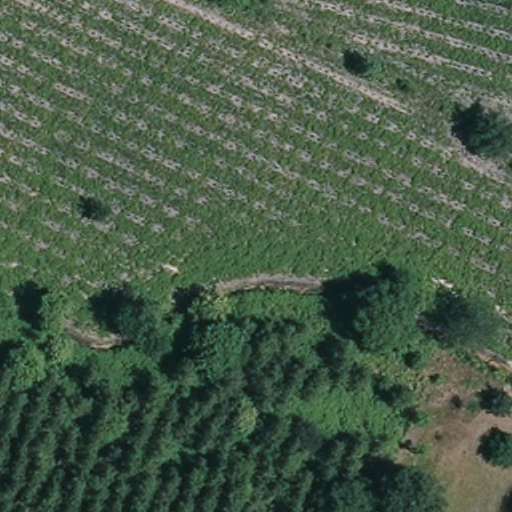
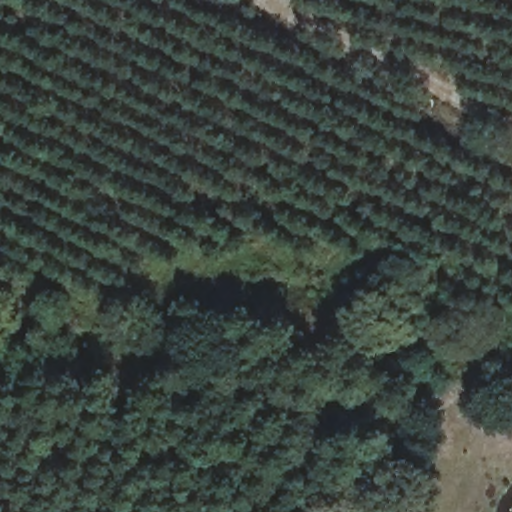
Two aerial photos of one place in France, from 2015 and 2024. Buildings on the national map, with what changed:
[]

